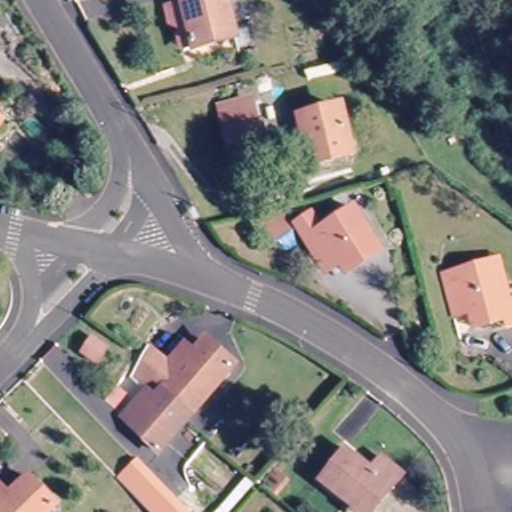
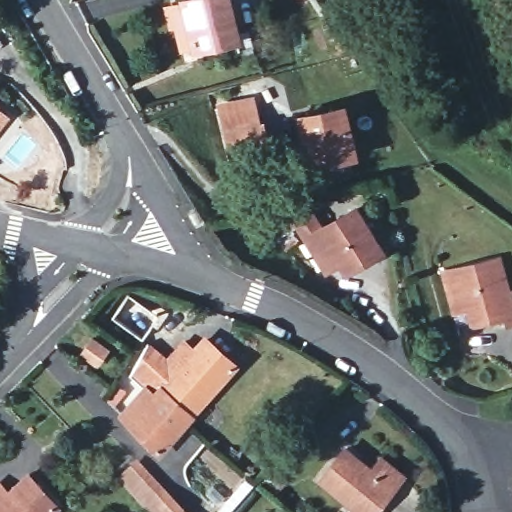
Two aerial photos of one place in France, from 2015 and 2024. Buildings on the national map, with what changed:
unchanged [(204,48),(197,23),(184,27),(178,1),(179,0),(233,0),(244,36),(204,48)]
unchanged [(0,105),(0,102),(1,104),(0,105)]
unchanged [(272,158),(234,169),(218,112),(255,102),(272,158)]
unchanged [(349,160),(303,169),(295,122),(340,111),(349,160)]
unchanged [(0,126),(0,116),(5,120),(0,126)]
unchanged [(319,249),(308,233),(333,213),(344,226),(358,216),(389,252),(360,277),(351,267),(340,275),(319,249)]
unchanged [(496,320),(479,325),(472,296),(456,300),(448,270),(463,265),(504,252),(512,282),(512,315),(496,320)]
unchanged [(64,315),(80,327),(69,343),(53,331),(64,315)]
unchanged [(168,361),(181,343),(194,352),(203,342),(234,367),(185,426),(145,393),(170,362),(168,361)]
unchanged [(143,391),(124,377),(146,347),(168,361),(143,391)]
unchanged [(161,455),(121,422),(145,393),(185,426),(161,455)]
unchanged [(370,470),(380,457),(401,472),(373,512),(359,512),(319,482),(343,450),(370,470)]
unchanged [(187,512),(147,512),(114,477),(137,456),(187,512)]
unchanged [(24,476),(55,503),(48,512),(0,512),(0,503),(2,505),(24,476)]

